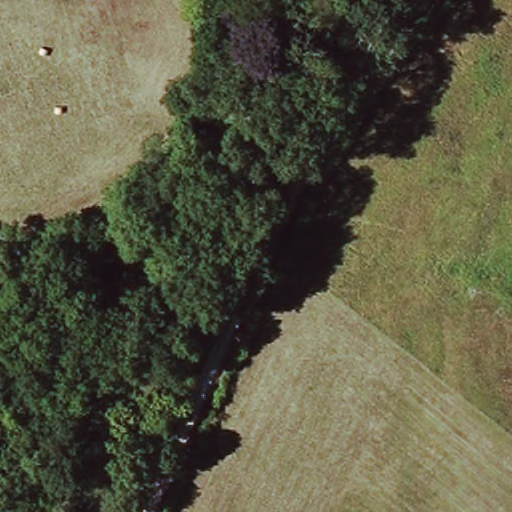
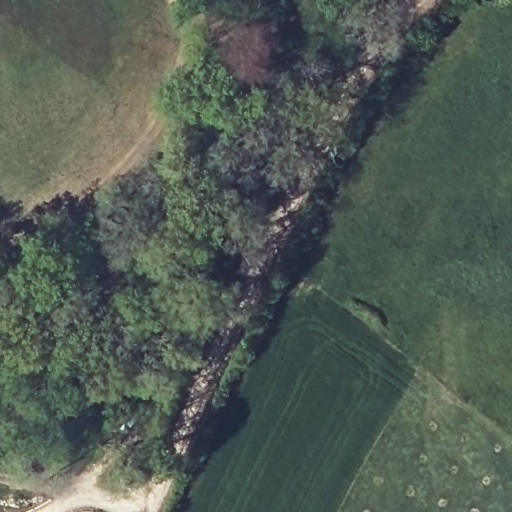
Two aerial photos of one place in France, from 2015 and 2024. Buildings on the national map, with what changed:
[]

